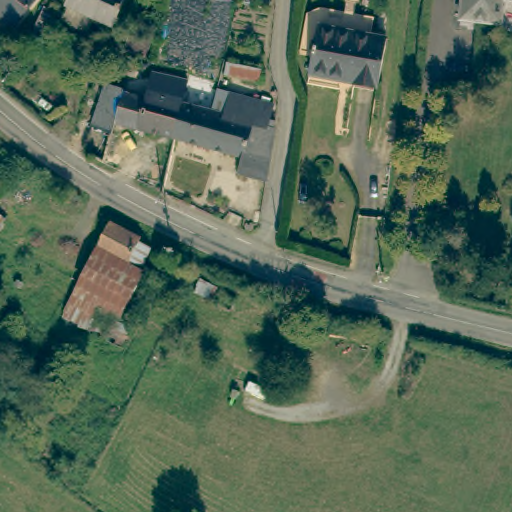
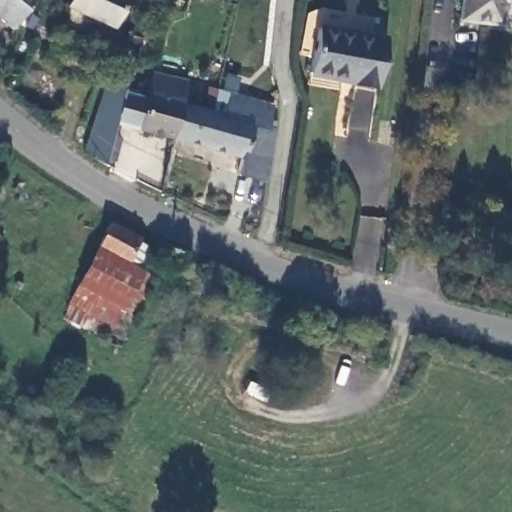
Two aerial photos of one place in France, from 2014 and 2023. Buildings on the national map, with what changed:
unchanged [(0,19),(0,0),(31,0),(13,27),(0,19)]
unchanged [(51,5),(40,30),(30,25),(41,0),(51,5)]
unchanged [(114,24),(96,16),(90,31),(63,20),(72,0),(124,0),(114,24)]
unchanged [(500,16),(459,11),(461,0),(502,0),(500,16)]
unchanged [(384,36),(376,78),(311,67),(318,25),(384,36)]
unchanged [(91,53),(72,75),(47,53),(66,31),(91,53)]
unchanged [(248,76),(227,69),(235,47),(255,54),(254,59),(248,76)]
unchanged [(121,121),(106,160),(86,153),(107,86),(146,97),(157,70),(198,83),(190,106),(176,139),(121,121)]
unchanged [(242,158),(176,139),(190,106),(199,110),(220,115),(228,92),(242,96),(264,104),(242,158)]
unchanged [(237,175),(242,158),(264,104),(282,110),(280,132),(265,184),(237,175)]
unchanged [(143,262),(134,257),(129,266),(96,249),(109,224),(150,247),(143,262)]
unchanged [(142,273),(114,328),(69,303),(96,249),(129,266),(142,273)]

